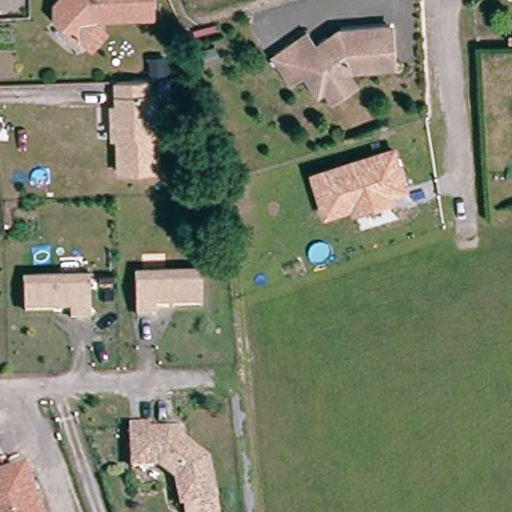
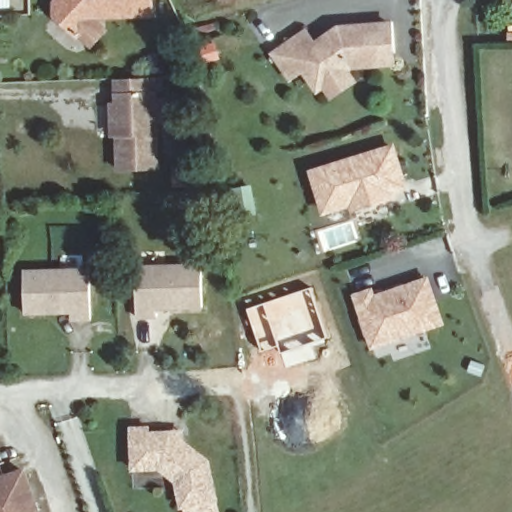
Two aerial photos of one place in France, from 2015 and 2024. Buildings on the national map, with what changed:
unchanged [(91,17),(72,37),(51,16),(50,3),(53,0),(147,0),(148,15),(91,17)]
unchanged [(322,84),(316,88),(302,66),(288,75),(272,50),(286,41),(307,26),(316,40),(328,31),(338,25),(390,22),(392,62),(351,65),(345,69),(352,80),(330,95),(322,84)]
unchanged [(214,44),(217,56),(204,60),(200,47),(214,44)]
unchanged [(147,79),(147,94),(155,94),(157,169),(118,170),(117,124),(112,124),(111,104),(116,104),(115,80),(147,79)]
unchanged [(308,171),(394,143),(409,190),(394,195),(396,200),(352,214),(350,209),(323,216),(308,171)]
unchanged [(201,265),(202,307),(152,308),(152,315),(136,315),(135,267),(201,265)]
unchanged [(24,271),(89,270),(91,317),(75,318),(75,312),(25,313),(24,271)]
new [(352,295),(373,287),(377,294),(429,276),(446,325),(371,350),(352,295)]
new [(310,285),(323,332),(318,337),(312,342),(307,344),(308,352),(300,355),(302,361),(285,367),(277,345),(260,352),(245,306),(310,285)]
unchanged [(174,480),(159,467),(134,472),(125,432),(142,428),(143,435),(166,430),(176,427),(180,438),(206,460),(213,495),(214,499),(210,500),(179,506),(174,480)]
unchanged [(0,480),(17,474),(29,505),(31,505),(34,511),(32,512),(0,512),(0,480)]

